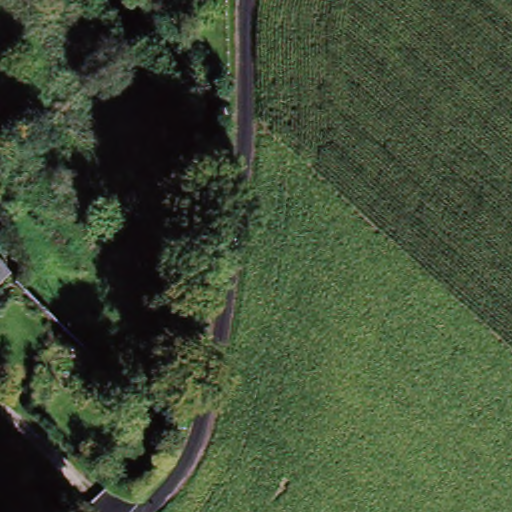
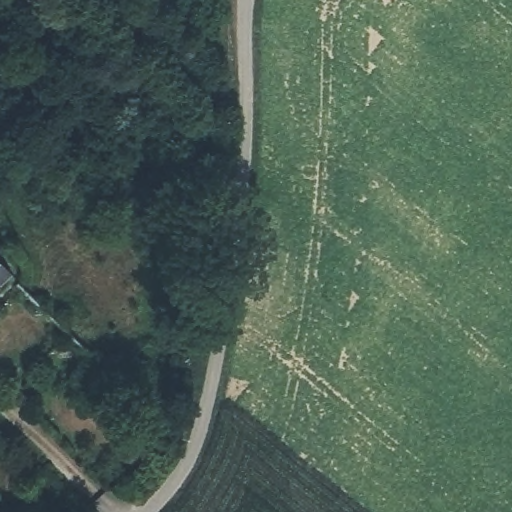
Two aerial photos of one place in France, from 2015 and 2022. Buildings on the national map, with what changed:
unchanged [(0,297),(0,279),(9,289),(0,297)]

